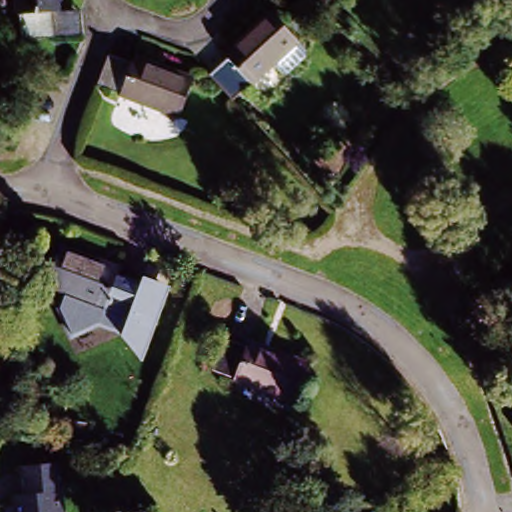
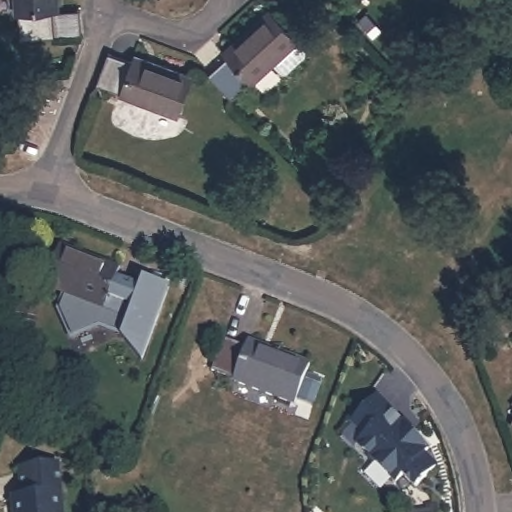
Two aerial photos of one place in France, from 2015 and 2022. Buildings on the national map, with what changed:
unchanged [(17,17),(12,17),(11,0),(54,0),(55,13),(76,12),(76,13),(79,37),(75,38),(51,40),(19,43),(17,17)]
unchanged [(227,56),(270,13),(306,51),(307,58),(288,76),(281,75),(275,69),(256,87),(252,83),(234,101),(225,92),(212,79),(231,61),(227,56)]
unchanged [(134,66),(137,58),(195,81),(179,124),(120,100),(122,97),(99,89),(111,57),(134,66)]
unchanged [(115,274),(114,279),(137,288),(125,318),(102,310),(101,313),(40,290),(55,250),(115,274)]
unchanged [(295,411),(236,388),(237,383),(215,376),(227,344),(249,352),(252,346),(311,369),(295,411)]
new [(394,407),(392,409),(403,421),(412,429),(414,426),(430,443),(425,449),(437,462),(416,484),(404,471),(396,478),(359,441),(367,433),(352,419),(379,392),(394,407)]
unchanged [(512,425),(512,428),(510,427),(512,425)]
unchanged [(22,512),(21,503),(18,503),(18,496),(27,495),(25,465),(64,460),(68,512),(22,512)]

